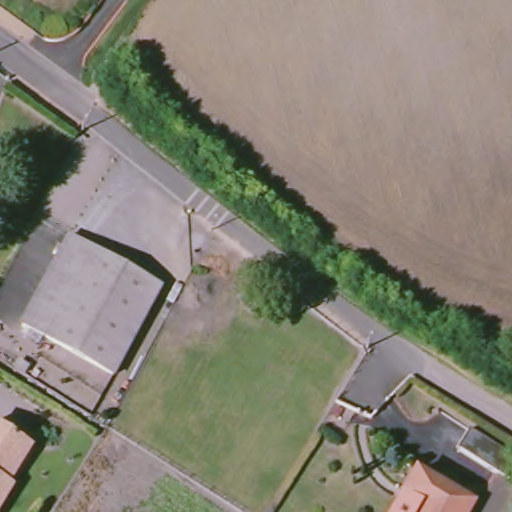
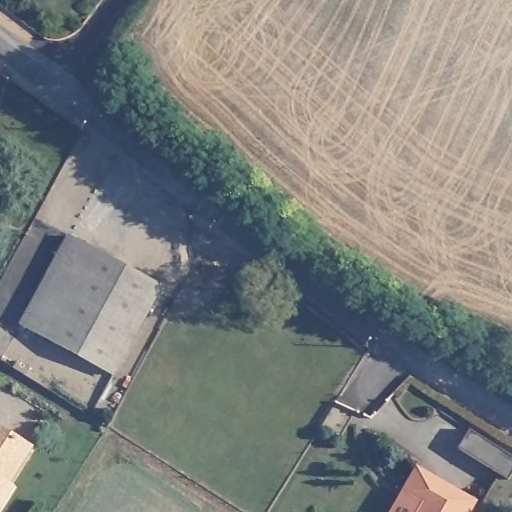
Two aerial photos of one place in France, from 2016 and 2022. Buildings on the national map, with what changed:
unchanged [(116,370),(27,320),(77,234),(164,282),(116,370)]
unchanged [(13,481),(16,484),(3,504),(0,510),(0,424),(36,447),(13,481)]
unchanged [(480,504),(475,512),(421,512),(426,503),(410,492),(424,469),(480,504)]

